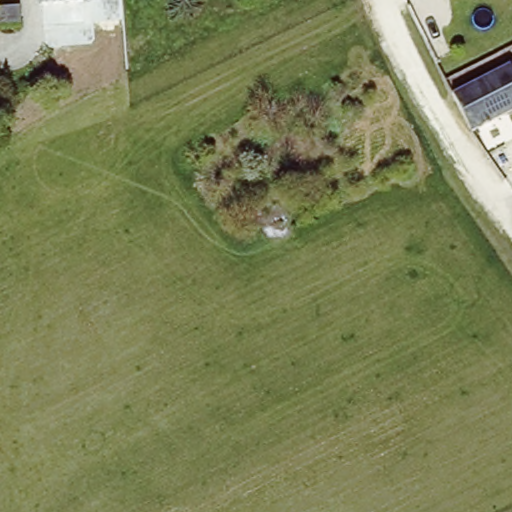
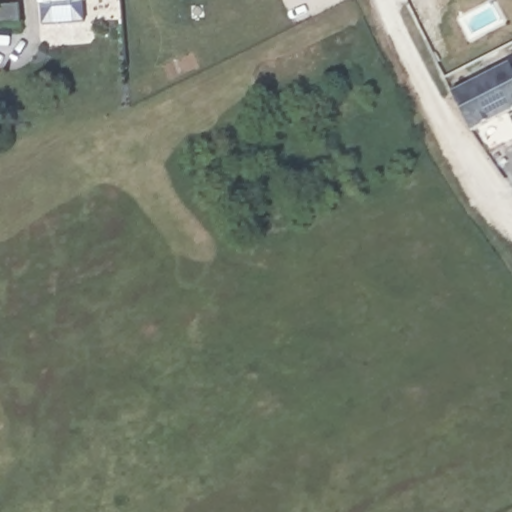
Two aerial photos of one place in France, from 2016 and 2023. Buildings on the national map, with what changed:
unchanged [(57,5),(57,12),(44,12),(44,7),(35,7),(35,0),(85,0),(82,5),(57,5)]
unchanged [(0,33),(0,17),(14,17),(14,32),(0,33)]
unchanged [(40,64),(35,60),(40,53),(45,56),(40,64)]
unchanged [(465,126),(449,91),(512,61),(512,104),(465,126)]

